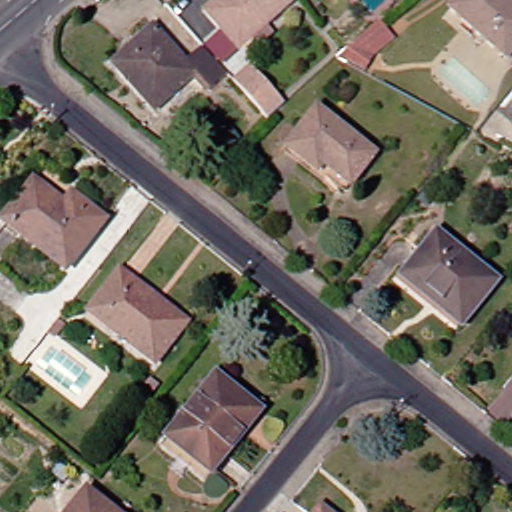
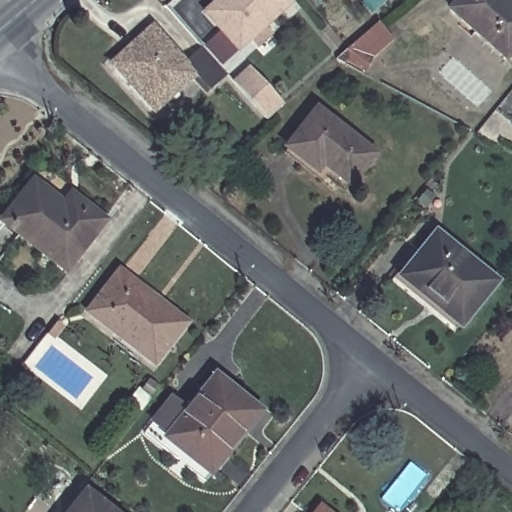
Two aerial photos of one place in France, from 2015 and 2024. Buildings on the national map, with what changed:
unchanged [(233,51),(199,12),(211,0),(286,0),(288,1),(233,51)]
unchanged [(443,10),(452,0),(503,0),(512,7),(512,47),(502,59),(443,10)]
unchanged [(367,20),(387,43),(359,69),(331,54),(342,43),(347,39),(367,20)]
unchanged [(203,93),(184,72),(144,109),(106,68),(131,44),(126,40),(143,25),(179,65),(196,49),(220,77),(203,93)]
unchanged [(226,84),(243,69),(277,108),(260,123),(226,84)]
unchanged [(323,173),(318,179),(279,149),(285,142),(312,107),(369,151),(346,180),(341,187),(323,173)]
unchanged [(509,124),(512,120),(512,127),(509,124)]
unchanged [(61,271),(3,224),(39,179),(98,225),(61,271)]
unchanged [(401,272),(431,234),(492,283),(458,326),(440,312),(396,278),(401,272)]
unchanged [(83,311),(112,275),(115,272),(153,302),(179,324),(146,363),(83,311)]
unchanged [(224,446),(204,472),(158,437),(172,419),(167,416),(175,405),(180,409),(208,373),(247,403),(254,409),(224,446)]
unchanged [(106,512),(65,512),(81,492),(106,512)]
unchanged [(313,512),(309,512),(311,510),(313,512)]

